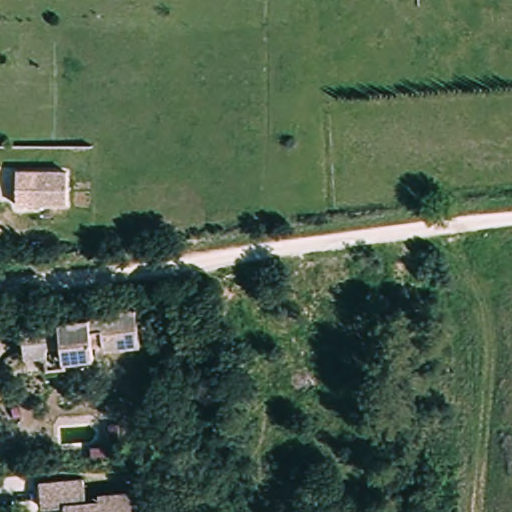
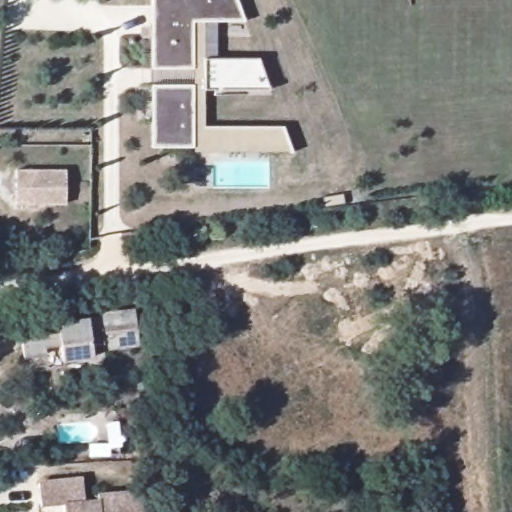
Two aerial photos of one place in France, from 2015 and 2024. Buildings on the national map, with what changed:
new [(246,88),(204,90),(204,67),(194,67),(194,68),(152,69),(150,0),(236,0),(243,20),(234,20),(202,21),(204,58),(245,56),(258,56),(271,87),(246,88)]
new [(152,84),(194,82),(195,146),(153,147),(152,84)]
new [(241,125),(291,124),(292,145),(242,146),(241,125)]
new [(195,146),(205,146),(205,125),(241,125),(242,146),(292,145),(292,152),(195,153),(195,146)]
unchanged [(20,168),(67,170),(65,204),(18,201),(20,168)]
unchanged [(135,305),(139,346),(88,352),(89,360),(65,362),(63,342),(41,345),(42,355),(21,357),(18,324),(105,315),(104,309),(135,305)]
unchanged [(63,504),(37,505),(37,475),(82,474),(82,495),(98,494),(98,485),(140,482),(142,512),(64,512),(63,504)]

